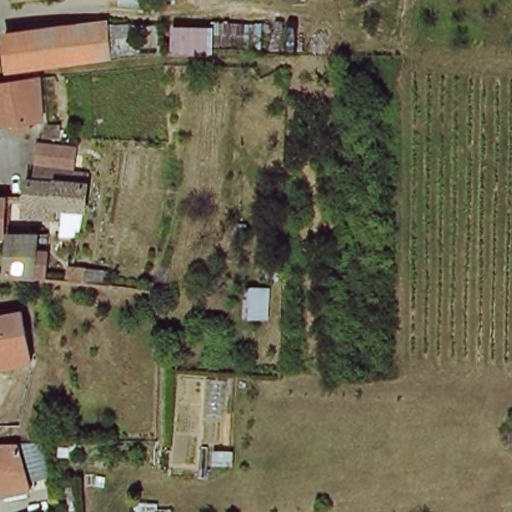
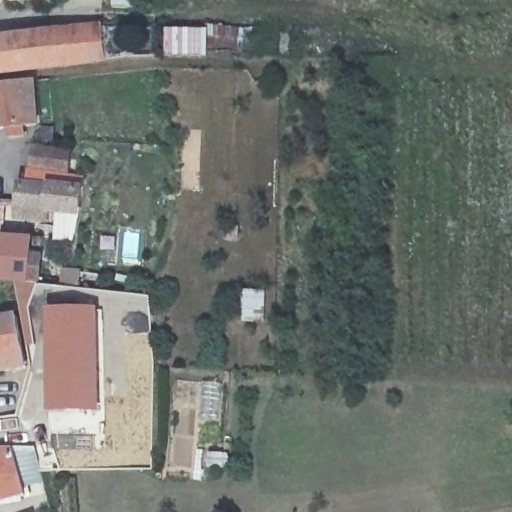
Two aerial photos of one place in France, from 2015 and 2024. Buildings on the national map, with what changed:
new [(115,0),(153,0),(153,6),(116,8),(115,0)]
unchanged [(0,43),(0,40),(99,28),(103,59),(104,62),(5,74),(0,43)]
unchanged [(34,85),(36,106),(0,109),(0,89),(34,85)]
unchanged [(36,106),(39,127),(25,128),(26,136),(11,138),(10,130),(0,132),(0,109),(36,106)]
unchanged [(33,146),(71,148),(68,183),(26,182),(33,146)]
unchanged [(51,188),(51,184),(84,188),(83,193),(78,215),(60,213),(59,225),(21,220),(22,203),(22,187),(29,187),(51,188)]
unchanged [(16,282),(0,281),(0,243),(15,238),(25,238),(40,239),(37,285),(23,283),(16,282)]
unchanged [(63,287),(67,270),(81,273),(78,288),(63,287)]
unchanged [(274,291),(273,324),(244,324),(243,297),(274,291)]
new [(101,303),(106,410),(49,414),(47,386),(46,304),(101,303)]
unchanged [(16,317),(28,368),(0,374),(0,321),(16,317)]
new [(100,439),(100,450),(59,452),(57,437),(52,437),(49,414),(106,410),(106,435),(106,439),(100,439)]
unchanged [(26,495),(0,501),(0,447),(14,447),(26,495)]

